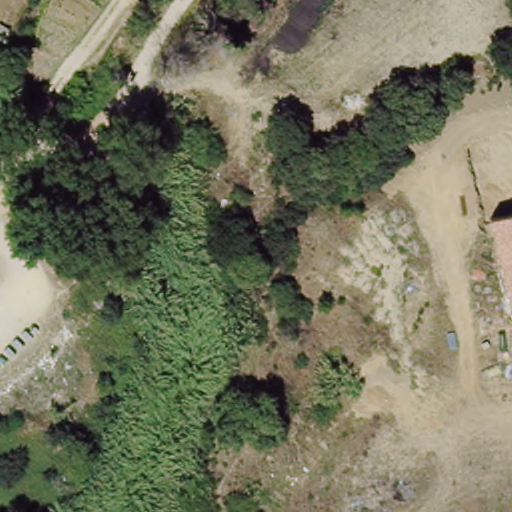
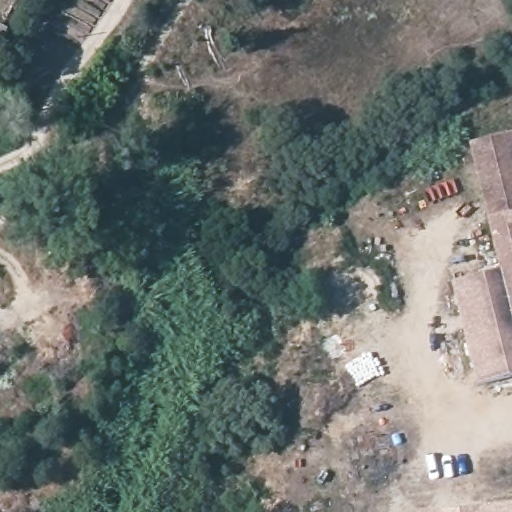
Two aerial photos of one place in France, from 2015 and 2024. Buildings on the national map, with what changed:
unchanged [(14,40),(0,55),(0,30),(14,40)]
new [(471,143),(512,133),(512,212),(490,217),(471,143)]
unchanged [(486,218),(512,212),(512,318),(486,218)]
new [(455,283),(501,273),(512,318),(512,375),(478,383),(455,283)]
new [(431,512),(512,502),(512,512),(431,512)]

